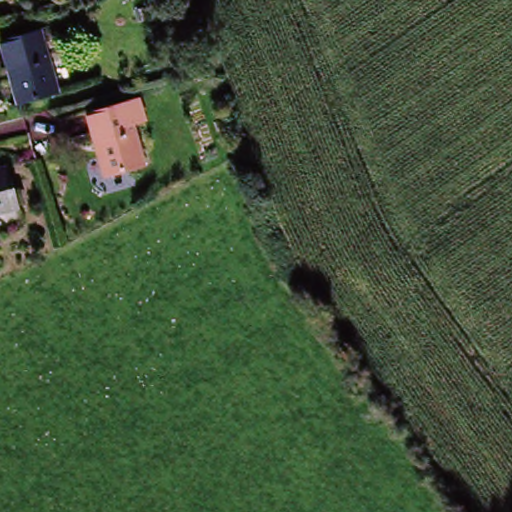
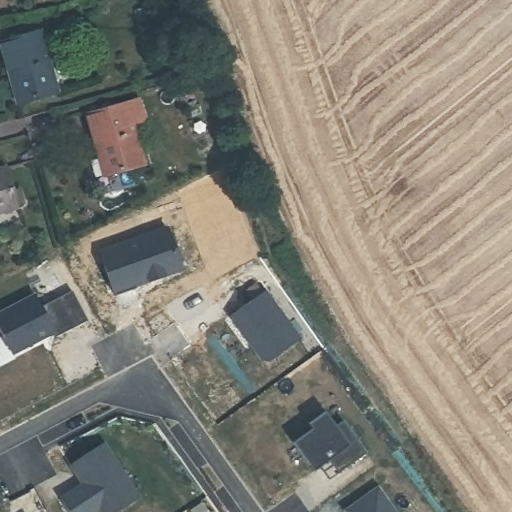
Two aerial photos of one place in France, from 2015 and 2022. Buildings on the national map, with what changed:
unchanged [(17,104),(0,50),(0,39),(38,27),(57,91),(17,104)]
unchanged [(106,177),(87,115),(131,100),(142,97),(148,116),(136,120),(150,166),(106,177)]
unchanged [(19,206),(0,212),(0,168),(7,166),(19,206)]
new [(269,361),(262,360),(230,316),(264,291),(299,340),(269,361)]
new [(57,331),(11,355),(0,332),(0,313),(38,293),(57,331)]
new [(292,443),(312,429),(308,425),(325,412),(335,426),(342,421),(366,453),(338,473),(329,460),(313,472),(292,443)]
new [(82,484),(70,465),(102,443),(138,498),(117,512),(100,512),(99,510),(95,512),(68,512),(60,500),(76,488),(82,485),(84,486),(82,484)]
new [(329,460),(338,473),(329,480),(320,467),(329,460)]
new [(377,489),(394,512),(346,512),(345,511),(377,489)]

